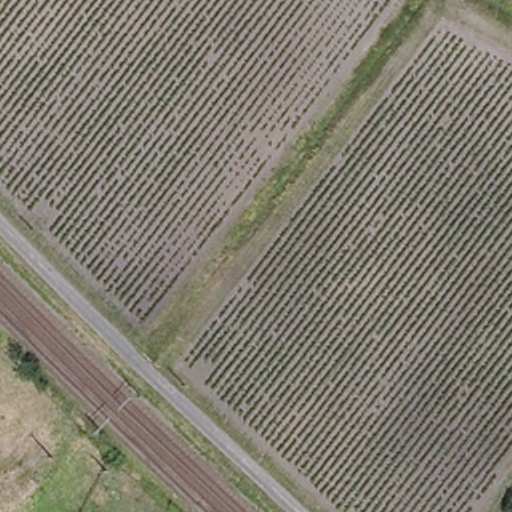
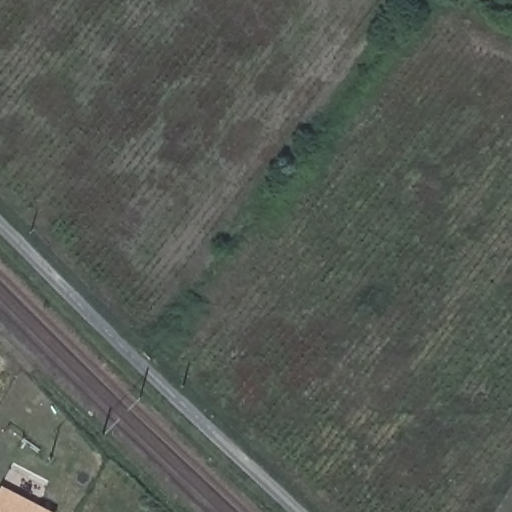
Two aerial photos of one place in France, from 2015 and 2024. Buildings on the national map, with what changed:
new [(55,512),(0,512),(0,487),(1,484),(55,512)]

